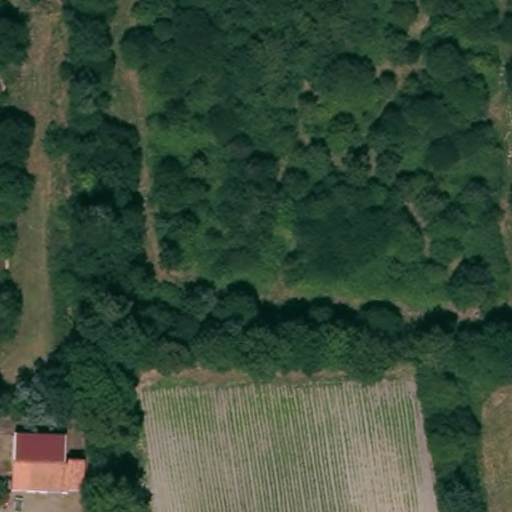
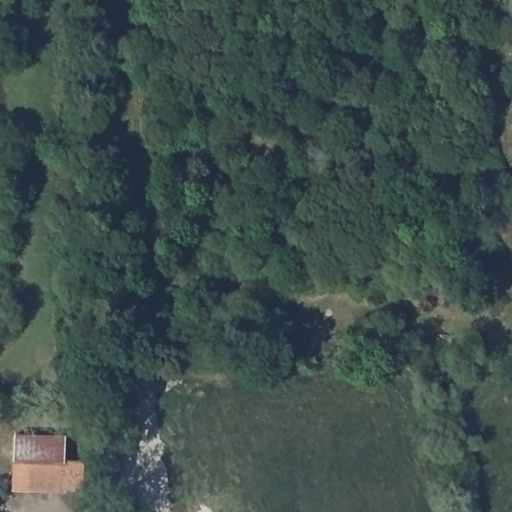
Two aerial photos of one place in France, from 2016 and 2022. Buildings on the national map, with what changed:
unchanged [(75,456),(73,501),(20,498),(23,452),(75,456)]

